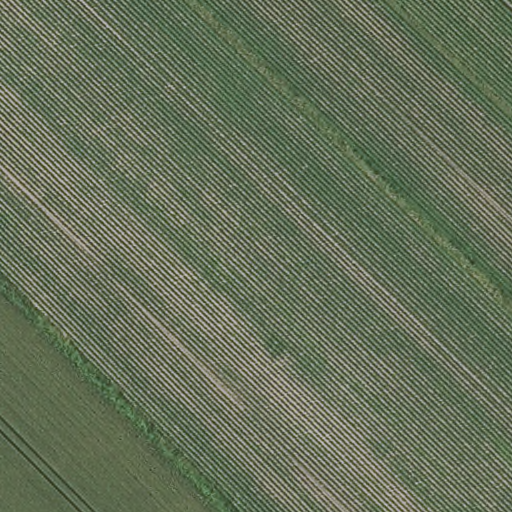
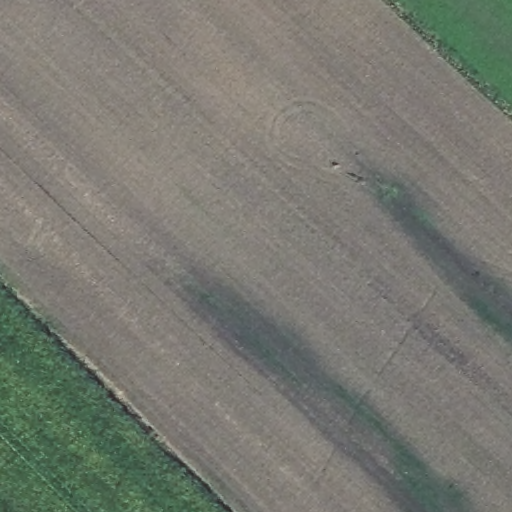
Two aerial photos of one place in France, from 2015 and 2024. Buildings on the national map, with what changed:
[]

